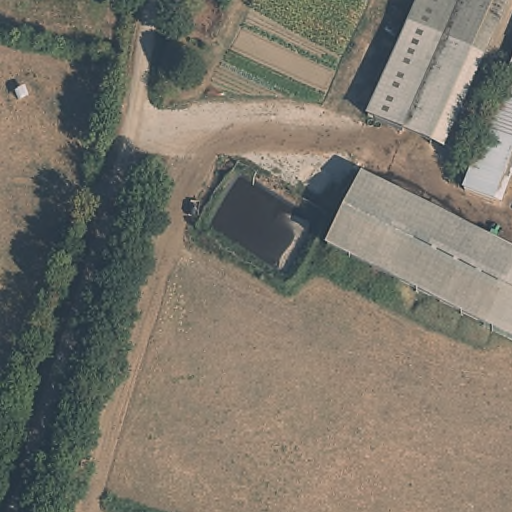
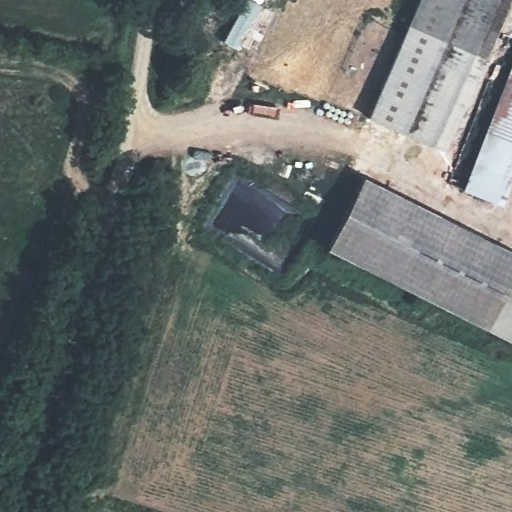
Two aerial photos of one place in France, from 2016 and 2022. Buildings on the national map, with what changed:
unchanged [(417,0),(498,0),(480,56),(456,45),(407,23),(417,0)]
unchanged [(369,107),(407,23),(456,45),(416,129),(369,107)]
unchanged [(444,141),(416,129),(456,45),(480,56),(445,138),(444,141)]
unchanged [(501,206),(465,193),(512,67),(512,177),(501,206)]
unchanged [(512,260),(512,342),(476,325),(334,255),(367,188),(446,227),(512,260)]

